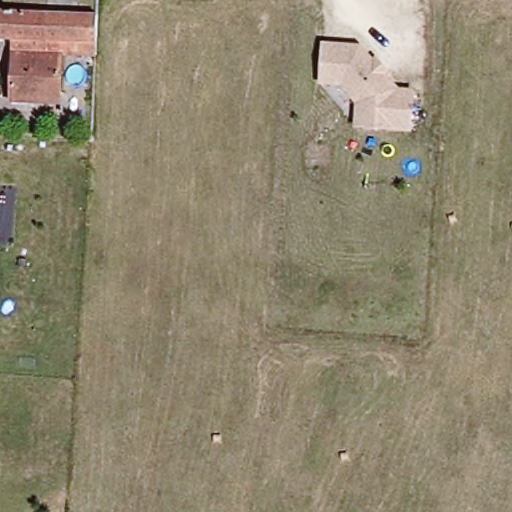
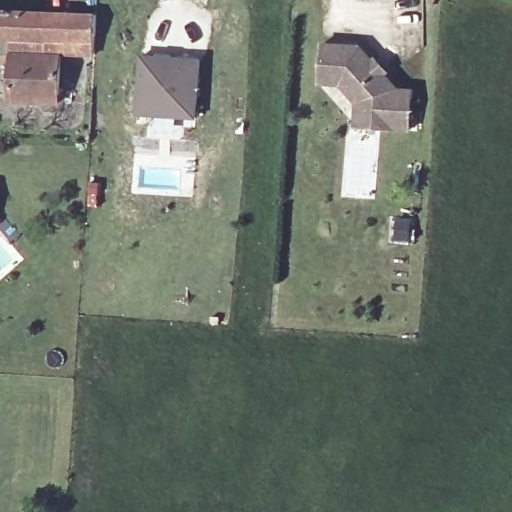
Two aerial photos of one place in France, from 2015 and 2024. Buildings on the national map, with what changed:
unchanged [(62,63),(60,103),(13,101),(16,37),(0,37),(0,9),(99,13),(95,64),(62,63)]
unchanged [(355,128),(355,103),(340,84),(319,84),(321,40),(363,42),(374,56),(377,53),(390,68),(386,72),(398,86),(415,87),(413,131),(355,128)]
new [(202,56),(199,120),(136,116),(140,53),(202,56)]

